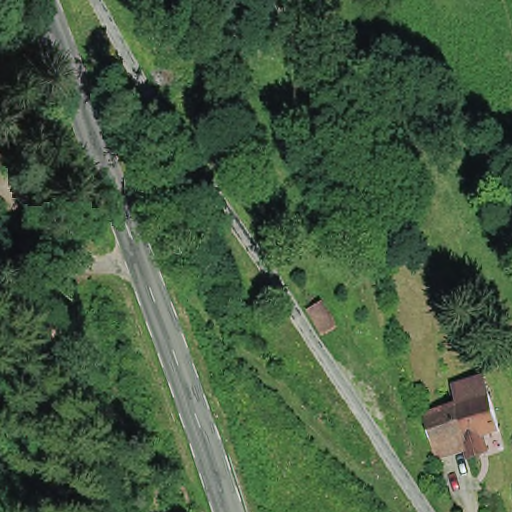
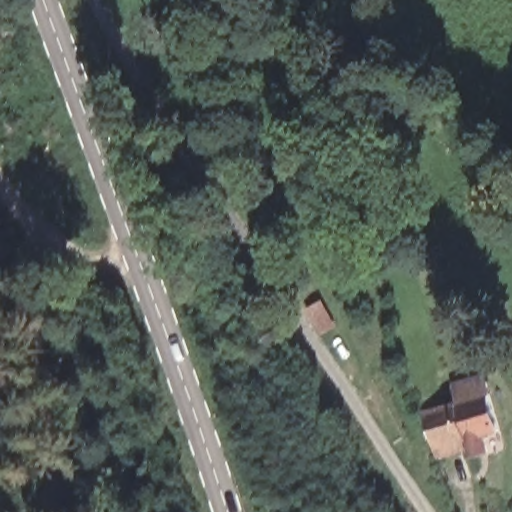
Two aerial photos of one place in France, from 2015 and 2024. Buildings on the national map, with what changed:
unchanged [(437,456),(427,423),(457,413),(461,412),(456,394),(485,384),(491,403),(502,437),(483,443),(487,457),(472,461),(468,448),(437,456)]

